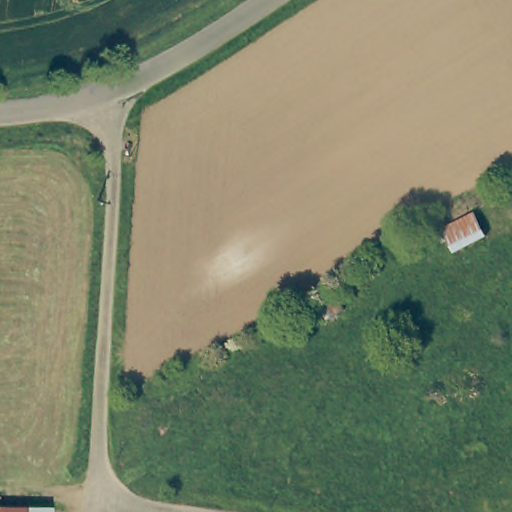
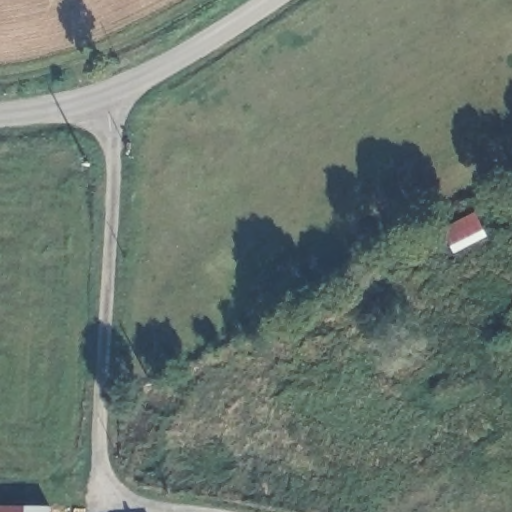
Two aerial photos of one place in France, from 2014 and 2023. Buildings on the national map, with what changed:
unchanged [(47,511),(47,512),(0,512),(0,507),(47,511)]

